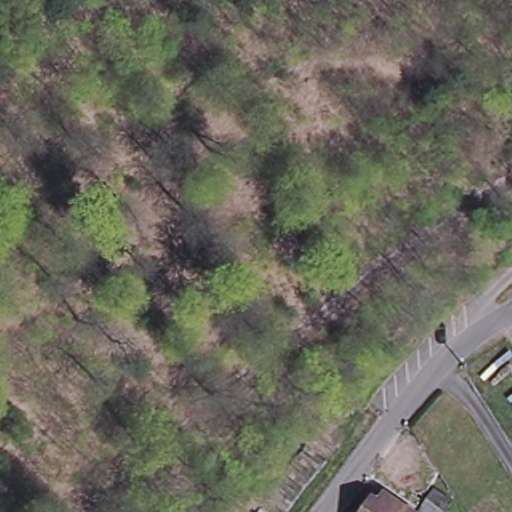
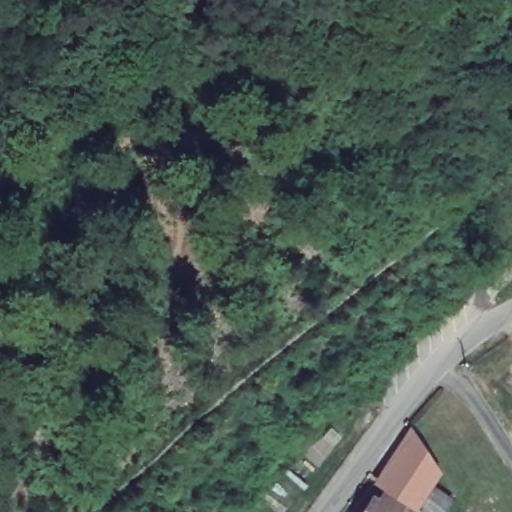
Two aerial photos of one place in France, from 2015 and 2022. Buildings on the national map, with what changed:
new [(434,484),(453,500),(444,512),(419,512),(385,488),(372,483),(410,426),(441,472),(434,484)]
unchanged [(385,488),(419,512),(361,512),(373,494),(379,497),(385,488)]

